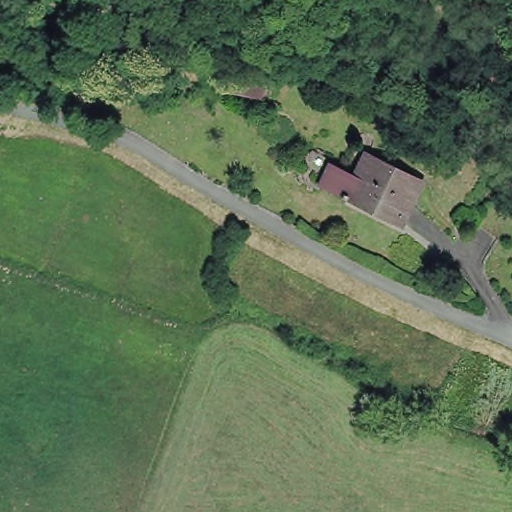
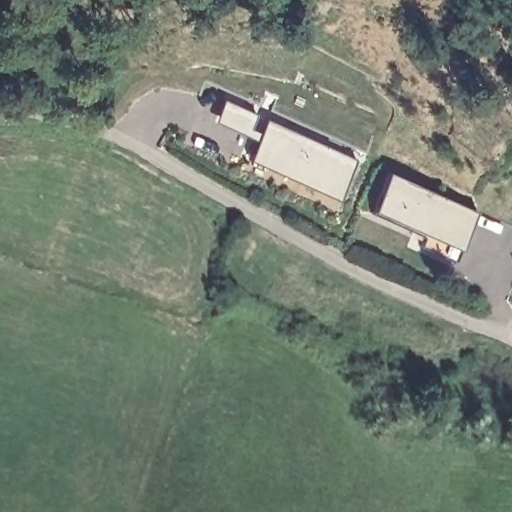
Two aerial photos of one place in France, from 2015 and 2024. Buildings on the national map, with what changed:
demolished [(261,96),(232,90),(232,86),(230,86),(230,81),(233,81),(236,71),(247,74),(264,78),(261,96)]
new [(259,143),(217,123),(225,101),(259,116),(252,129),(262,133),(267,120),(358,161),(341,202),(251,160),(259,143)]
demolished [(385,169),(386,166),(410,179),(410,181),(423,187),(405,226),(353,200),(352,204),(338,196),(325,189),(334,169),(347,176),(360,183),(372,161),(385,169)]
new [(477,212),(462,250),(374,213),(390,171),(477,212)]

